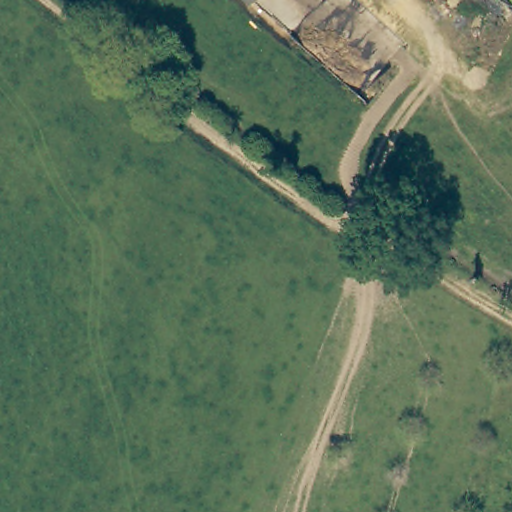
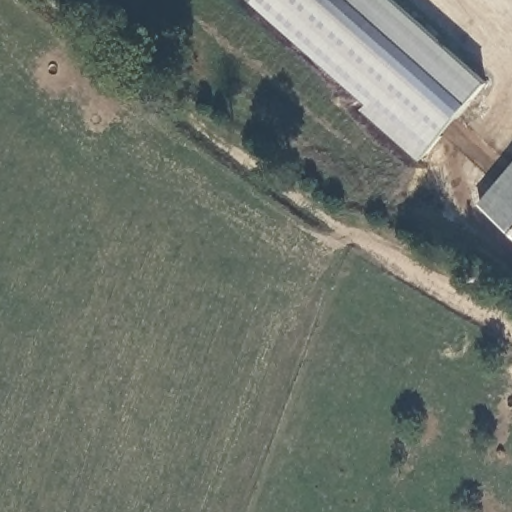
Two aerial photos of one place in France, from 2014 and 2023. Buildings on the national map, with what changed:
new [(490,81),(421,160),(363,110),(368,102),(252,0),(398,0),(490,81)]
new [(477,204),(512,165),(512,235),(477,204)]

